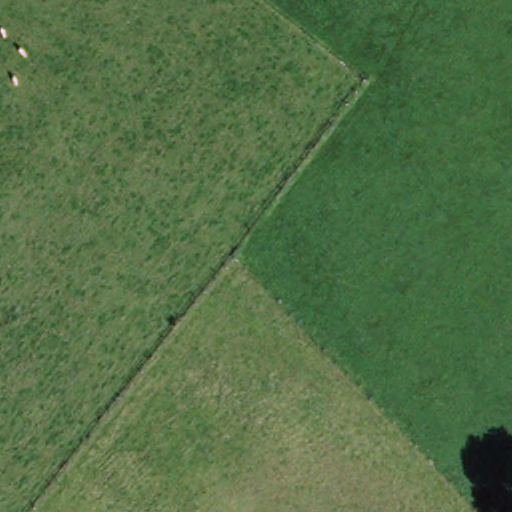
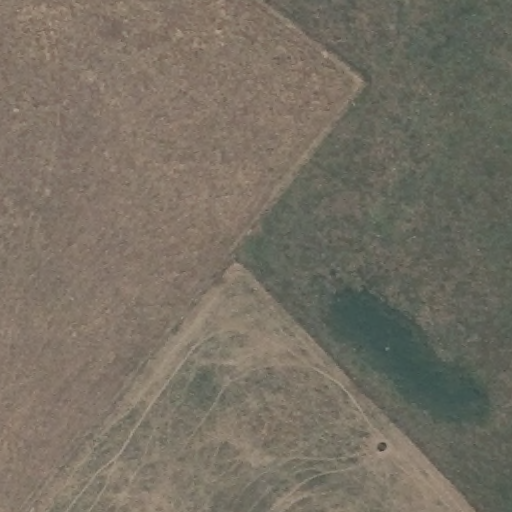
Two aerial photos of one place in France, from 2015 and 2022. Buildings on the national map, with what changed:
[]

